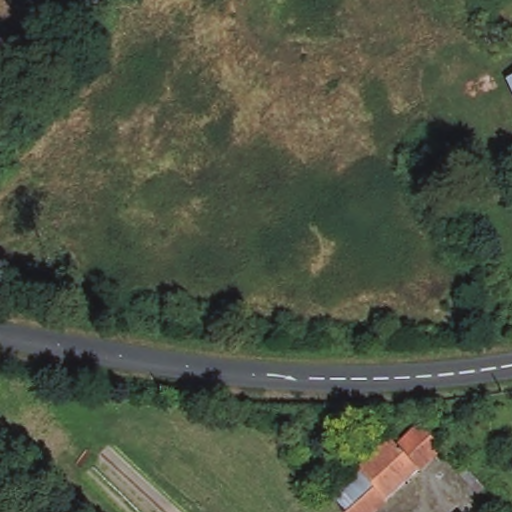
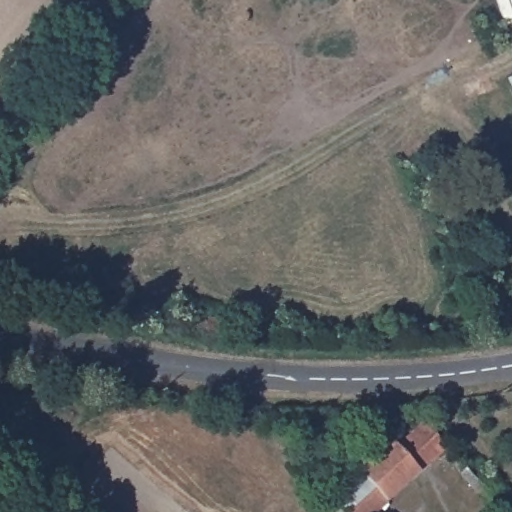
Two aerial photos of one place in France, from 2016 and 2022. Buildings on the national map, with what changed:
unchanged [(512,93),(507,84),(512,81),(512,93)]
unchanged [(349,469),(387,435),(391,440),(417,415),(430,430),(445,447),(416,473),(379,505),(372,512),(337,512),(365,488),(349,469)]
unchanged [(456,460),(468,473),(458,482),(447,470),(456,460)]

